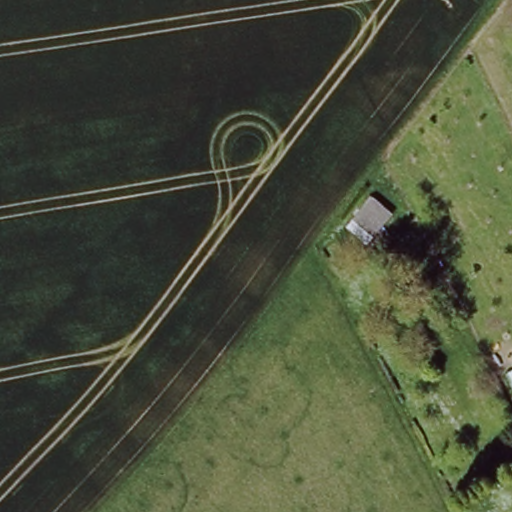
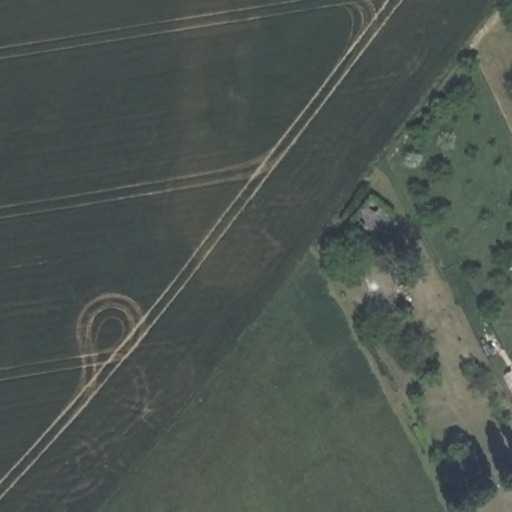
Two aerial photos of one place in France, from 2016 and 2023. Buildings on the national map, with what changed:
unchanged [(373,198),(392,213),(369,242),(350,227),(373,198)]

